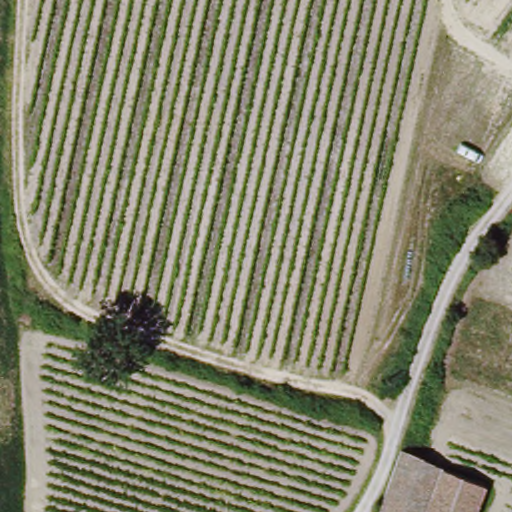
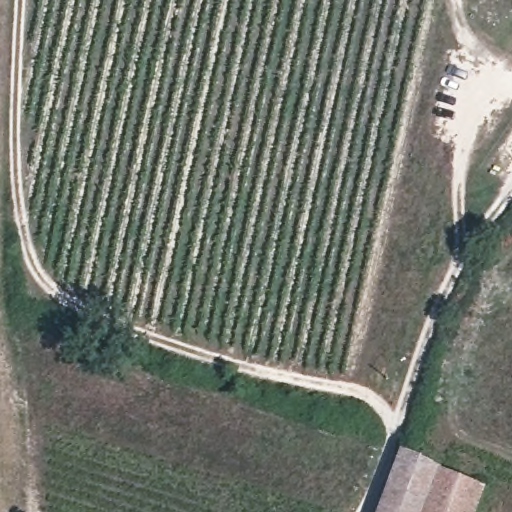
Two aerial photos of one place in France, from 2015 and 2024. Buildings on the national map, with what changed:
unchanged [(443,471),(490,490),(482,512),(384,512),(407,453),(443,469),(443,471)]

